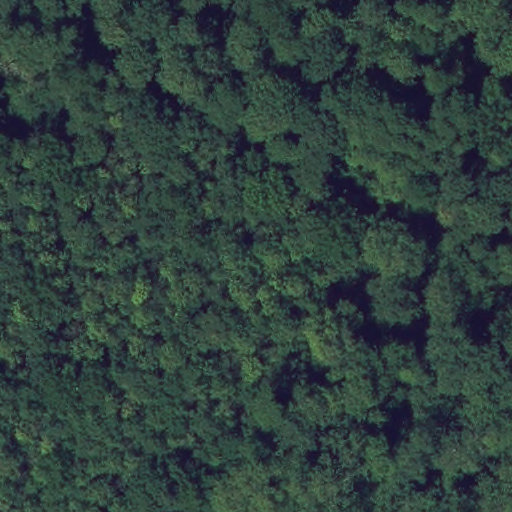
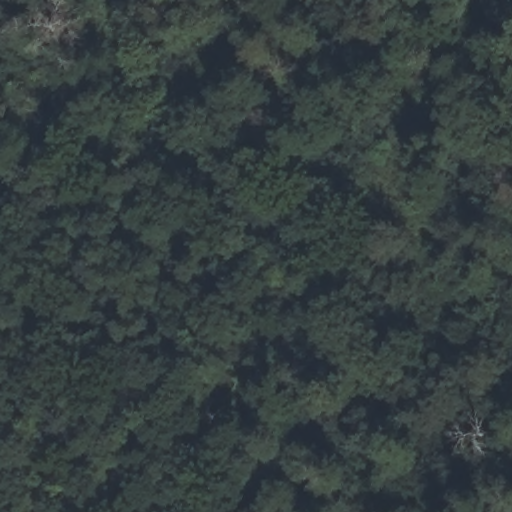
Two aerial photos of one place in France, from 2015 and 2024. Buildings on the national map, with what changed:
unchanged [(269,167),(250,191),(217,165),(235,141),(269,167)]

